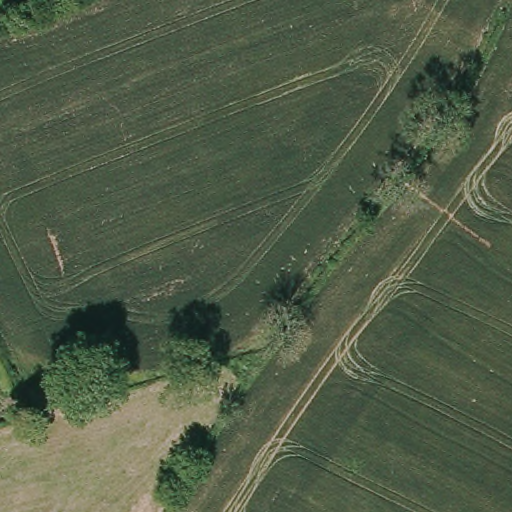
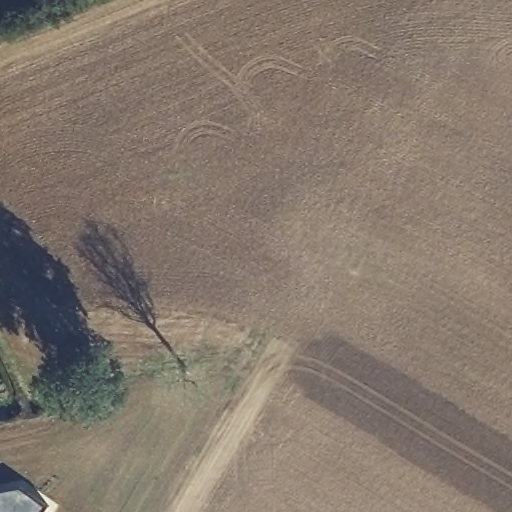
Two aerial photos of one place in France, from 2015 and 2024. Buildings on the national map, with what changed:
new [(47,507),(44,512),(0,512),(0,492),(29,491),(47,507)]

